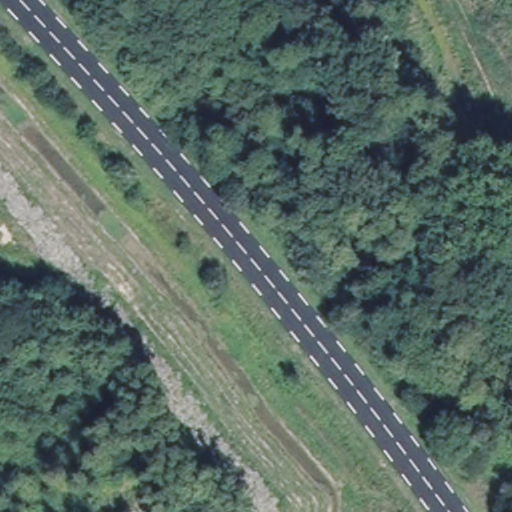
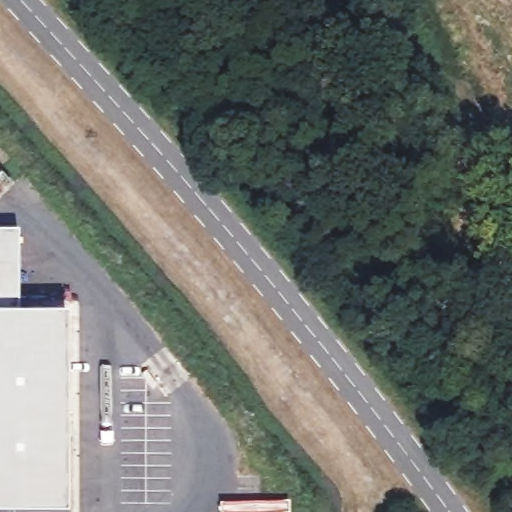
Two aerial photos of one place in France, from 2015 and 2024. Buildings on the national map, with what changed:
new [(17,232),(18,318),(67,317),(67,512),(0,512),(0,233),(17,232)]

